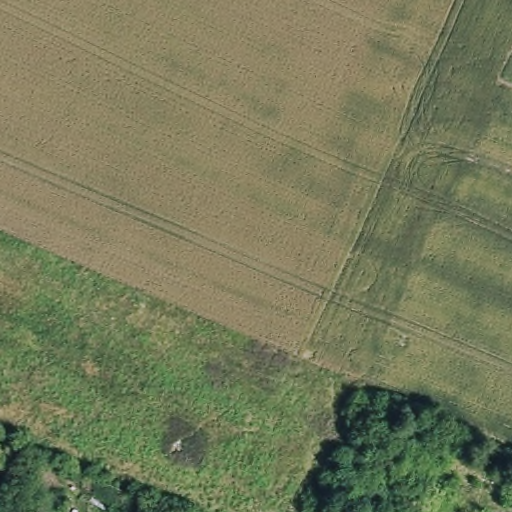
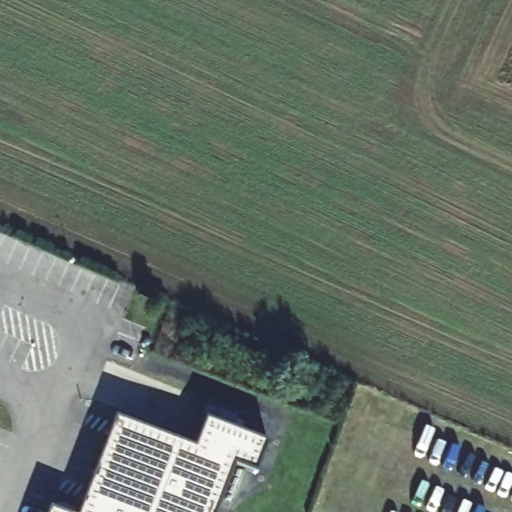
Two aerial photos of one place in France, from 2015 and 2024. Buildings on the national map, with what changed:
new [(191,447),(203,419),(265,441),(252,471),(231,463),(212,512),(76,512),(112,417),(191,447)]
new [(60,512),(46,512),(47,507),(60,512)]

